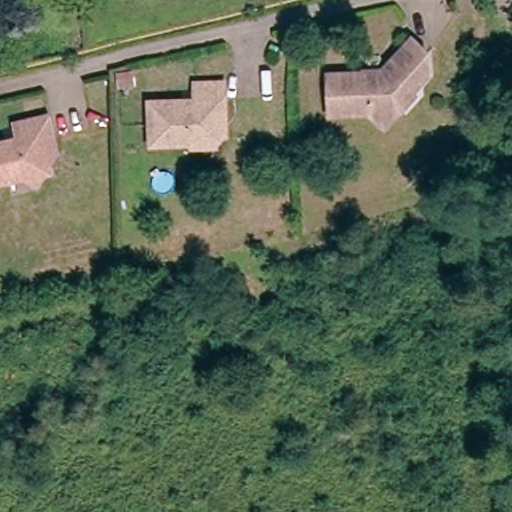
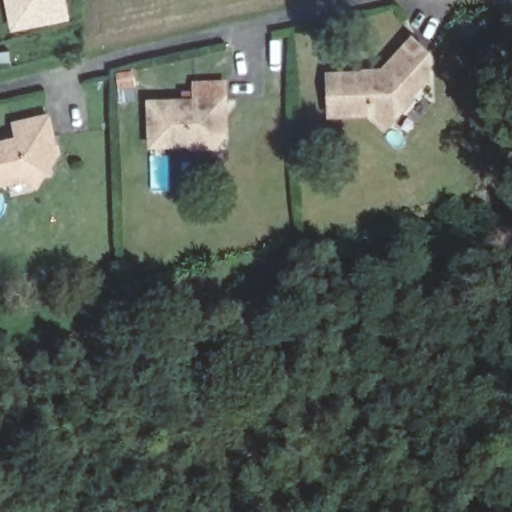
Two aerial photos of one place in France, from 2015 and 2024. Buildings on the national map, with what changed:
new [(68,20),(9,31),(4,0),(65,0),(68,20)]
unchanged [(383,73),(387,76),(397,65),(393,61),(411,43),(427,57),(429,78),(419,88),(415,84),(405,97),(412,103),(395,122),(381,128),(366,115),(331,117),(327,76),(383,73)]
new [(134,69),(136,100),(118,101),(114,71),(134,69)]
unchanged [(230,137),(219,149),(195,151),(194,146),(158,149),(155,104),(199,101),(198,86),(226,85),(227,104),(229,105),(230,137)]
unchanged [(47,165),(49,172),(41,173),(33,184),(21,173),(0,178),(0,140),(17,137),(13,122),(46,114),(50,134),(55,154),(47,165)]

